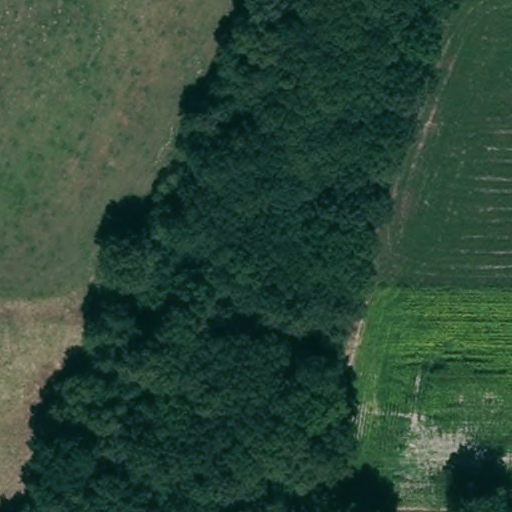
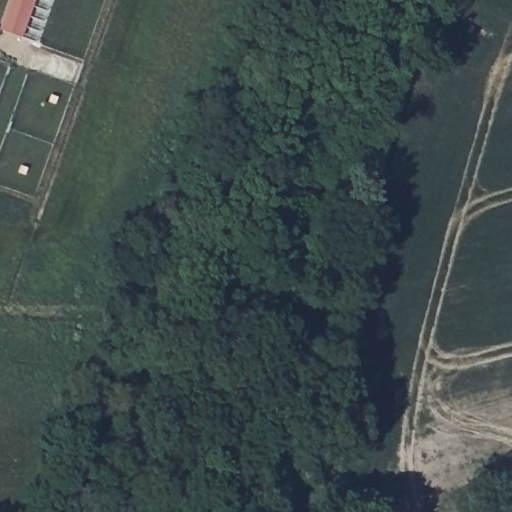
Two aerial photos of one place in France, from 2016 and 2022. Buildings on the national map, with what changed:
new [(20,38),(0,30),(0,25),(9,0),(32,0),(20,38)]

